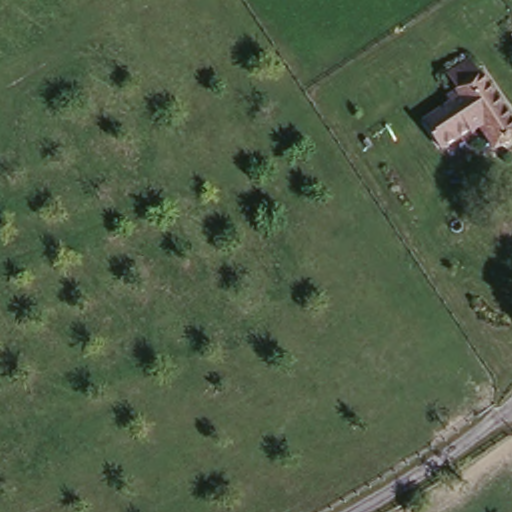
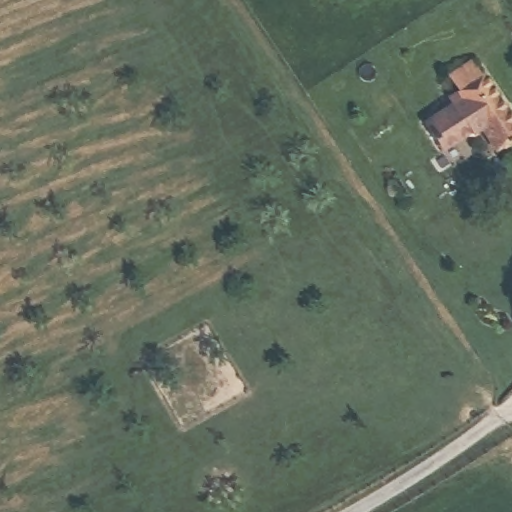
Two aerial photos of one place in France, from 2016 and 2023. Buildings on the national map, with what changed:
unchanged [(474,64),(512,134),(512,143),(491,156),(447,79),(474,64)]

